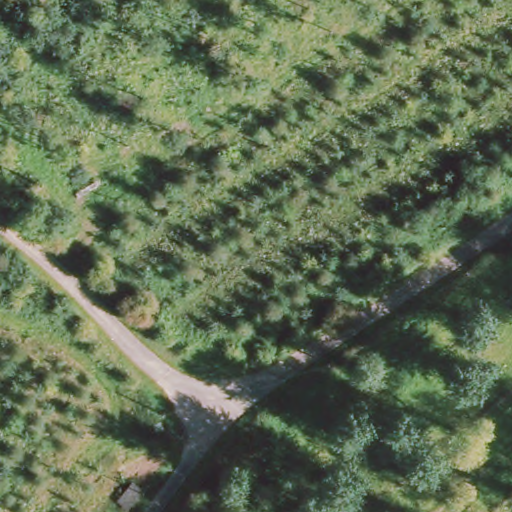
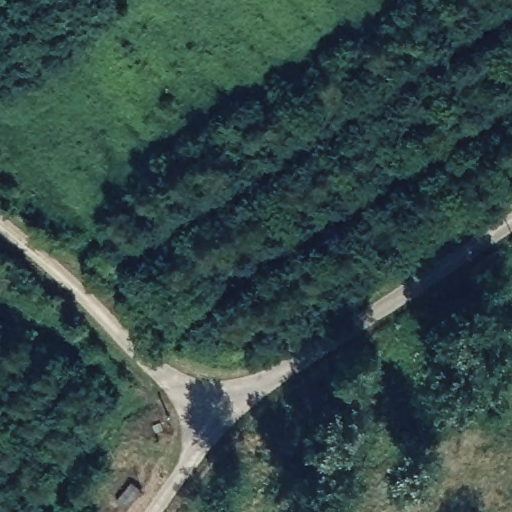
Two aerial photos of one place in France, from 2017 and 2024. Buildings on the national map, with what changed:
unchanged [(150,484),(136,505),(123,496),(138,477),(150,484)]

